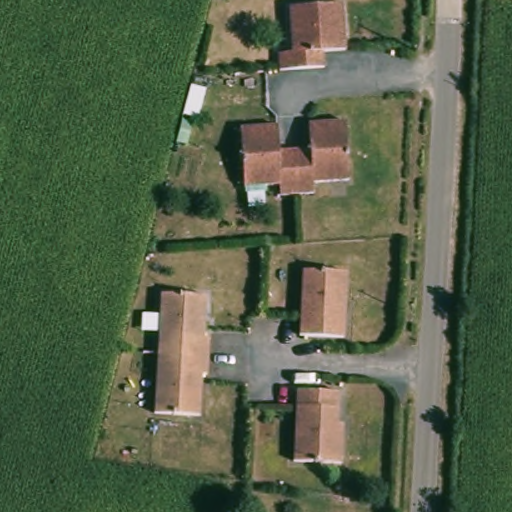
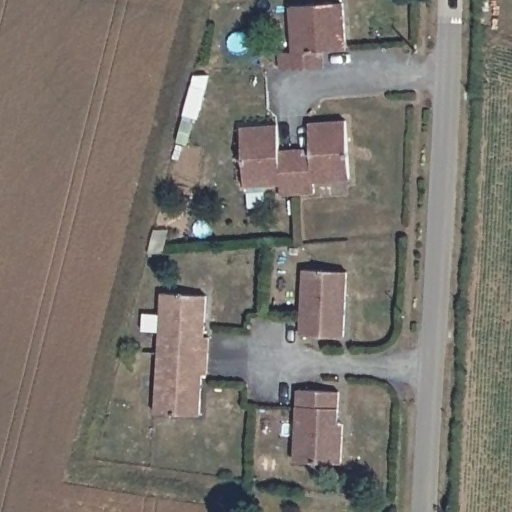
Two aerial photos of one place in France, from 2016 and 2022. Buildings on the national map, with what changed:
unchanged [(323,54),(320,55),(322,70),(318,70),(296,71),(287,72),(271,72),(270,58),(286,56),(283,8),(336,5),(340,53),(323,54)]
unchanged [(303,154),(302,124),(340,120),(343,180),(311,182),(312,198),(291,200),(272,200),(271,185),(237,189),(232,128),(269,125),(272,156),(287,155),(303,154)]
unchanged [(347,272),(345,337),(326,336),(301,335),(301,333),(303,270),(347,272)]
unchanged [(162,296),(207,298),(205,340),(210,340),(208,376),(203,376),(202,417),(157,415),(162,296)]
unchanged [(343,435),(342,462),(295,460),(298,403),(298,397),(298,390),(340,392),(338,422),(344,422),(343,435)]

